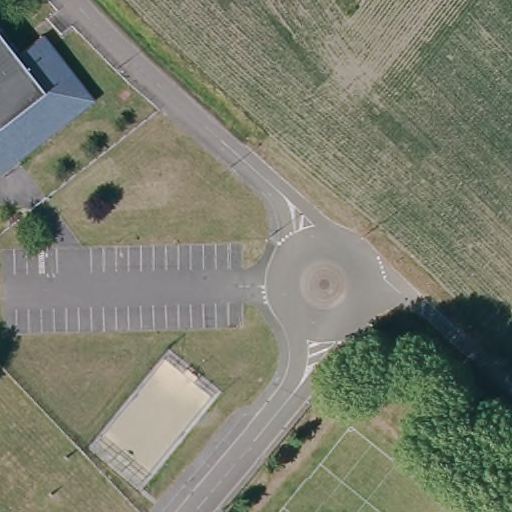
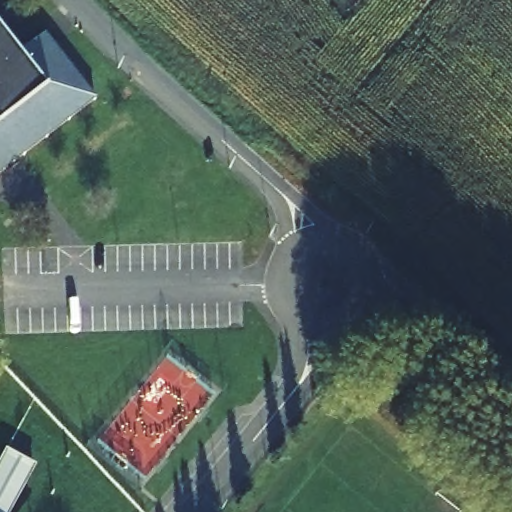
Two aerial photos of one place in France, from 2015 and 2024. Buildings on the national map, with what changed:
unchanged [(42,40),(92,105),(0,174),(0,31),(19,56),(42,40)]
new [(5,450),(34,465),(9,512),(0,512),(0,458),(5,450)]

